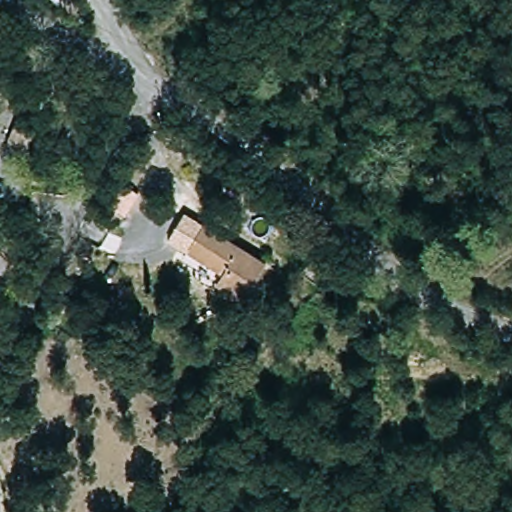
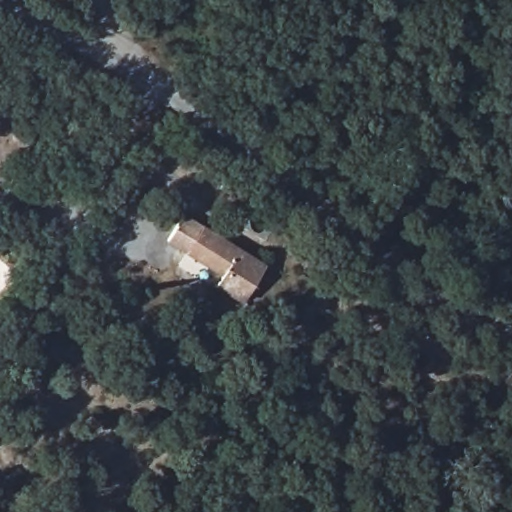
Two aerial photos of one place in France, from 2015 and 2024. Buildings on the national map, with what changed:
unchanged [(250,303),(220,290),(226,275),(188,257),(203,230),(268,262),(250,303)]

